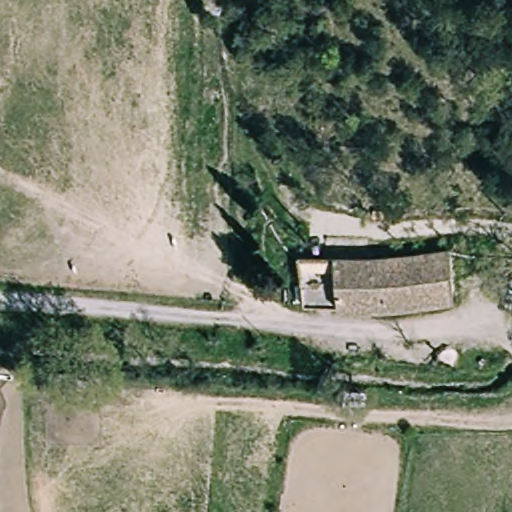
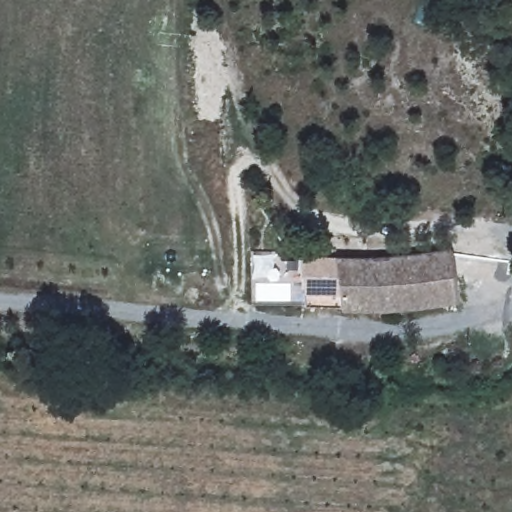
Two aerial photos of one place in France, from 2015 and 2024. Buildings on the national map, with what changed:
unchanged [(373,259),(412,256),(452,250),(456,300),(435,305),(405,309),(375,310),(344,309),(340,260),(373,259)]
unchanged [(307,309),(301,262),(340,260),(344,309),(307,309)]

